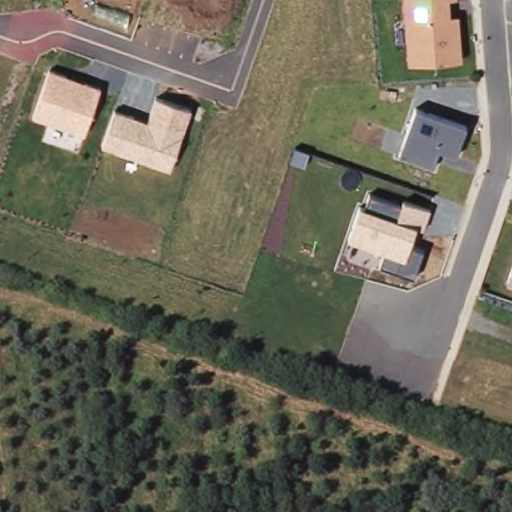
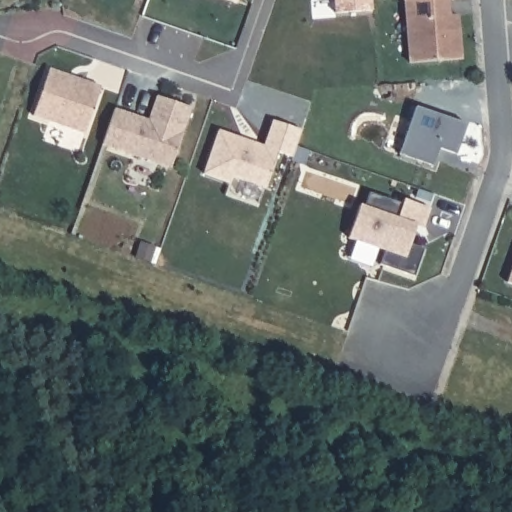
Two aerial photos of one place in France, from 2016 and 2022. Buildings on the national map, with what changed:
unchanged [(403,0),(449,0),(450,16),(458,16),(460,61),(409,64),(403,0)]
unchanged [(32,116),(48,69),(99,86),(82,134),(32,116)]
unchanged [(116,111),(146,121),(155,96),(190,109),(169,170),(103,147),(116,111)]
unchanged [(401,156),(416,107),(465,124),(455,154),(438,147),(432,166),(401,156)]
new [(216,131),(262,147),(271,122),(299,132),(290,158),(276,153),(263,189),(230,177),(228,184),(201,175),(216,131)]
unchanged [(360,206),(365,207),(369,196),(400,207),(402,201),(429,212),(423,232),(415,231),(411,246),(423,249),(414,277),(378,265),(383,252),(348,240),(360,206)]
unchanged [(512,271),(512,284),(508,282),(512,271)]

